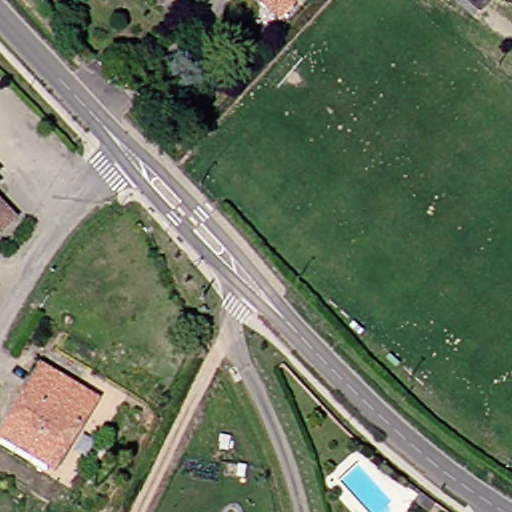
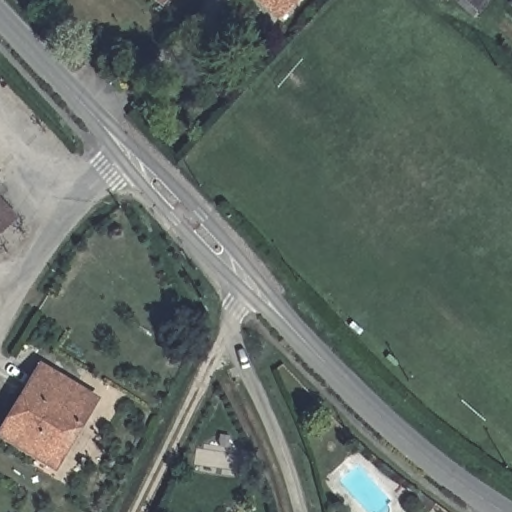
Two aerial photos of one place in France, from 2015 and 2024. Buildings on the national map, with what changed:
unchanged [(290,0),(273,18),(254,0),(290,0)]
unchanged [(439,0),(473,0),(477,5),(462,21),(439,0)]
unchanged [(0,232),(0,217),(7,225),(0,232)]
unchanged [(0,409),(24,364),(82,393),(45,467),(0,444),(0,409)]

